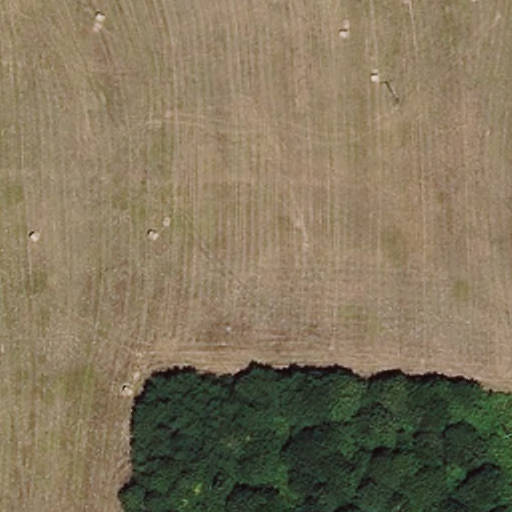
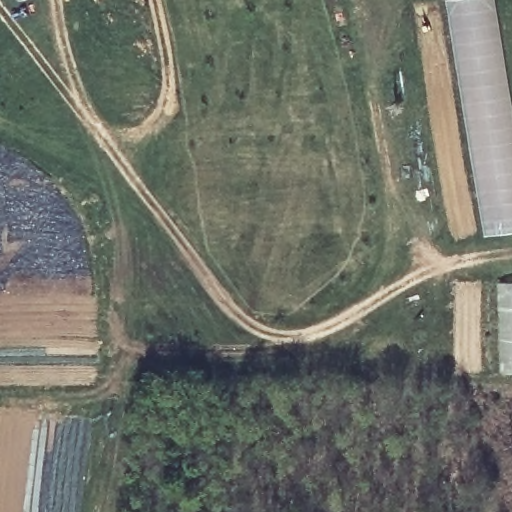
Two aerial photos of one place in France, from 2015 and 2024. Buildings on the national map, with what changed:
new [(512,93),(512,234),(487,237),(446,0),(498,0),(512,93)]
new [(512,283),(512,374),(499,373),(497,283),(512,283)]

